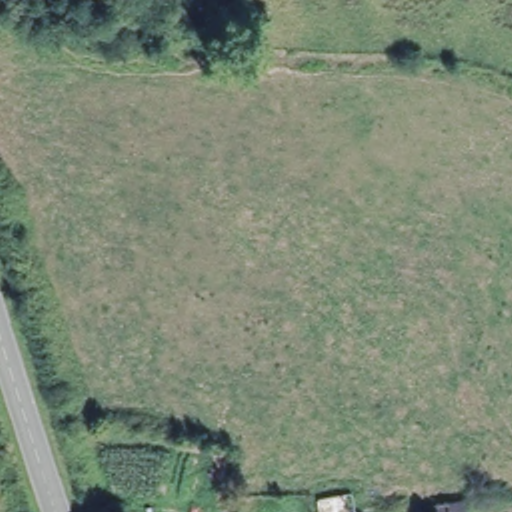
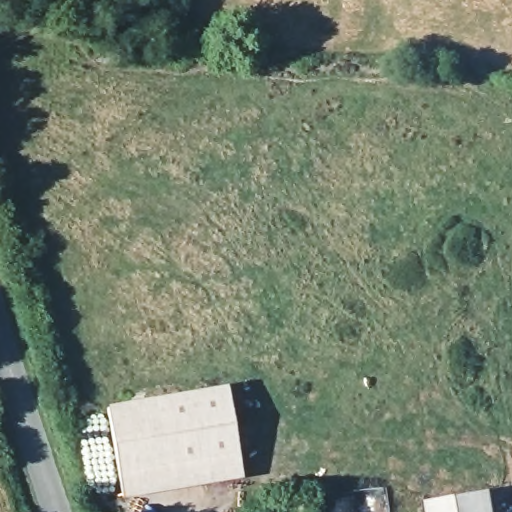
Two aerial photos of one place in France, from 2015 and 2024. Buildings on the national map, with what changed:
new [(227,385),(244,477),(121,498),(107,405),(227,385)]
unchanged [(467,512),(426,512),(425,505),(465,497),(467,512)]

